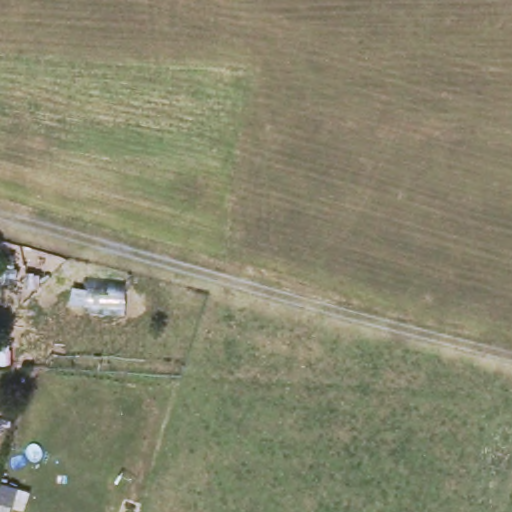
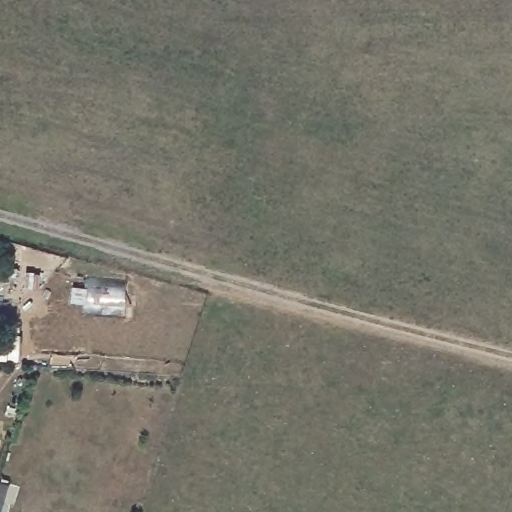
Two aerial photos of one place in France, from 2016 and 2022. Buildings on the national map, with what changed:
unchanged [(7,346),(6,362),(0,362),(0,344),(7,346)]

